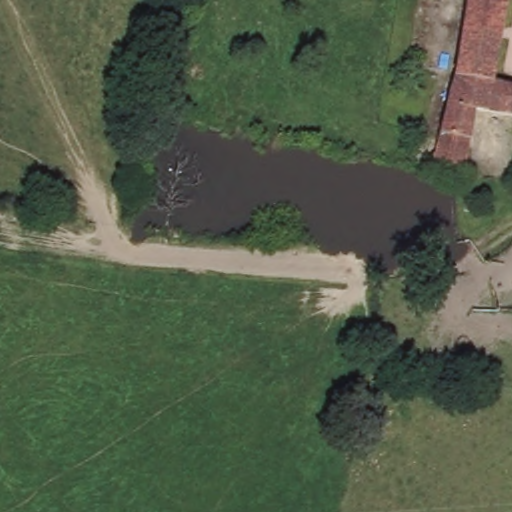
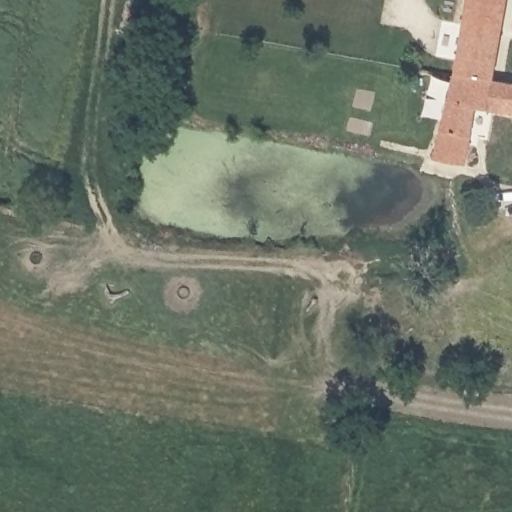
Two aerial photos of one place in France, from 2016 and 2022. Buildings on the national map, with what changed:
unchanged [(512,114),(481,108),(470,166),(438,160),(460,71),(472,0),(512,0),(512,2),(498,81),(512,84),(512,114)]

